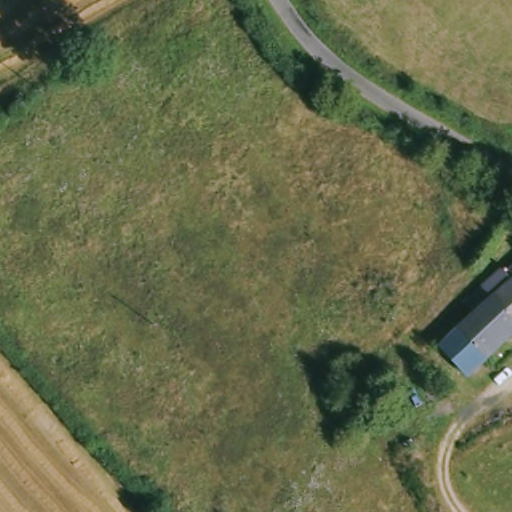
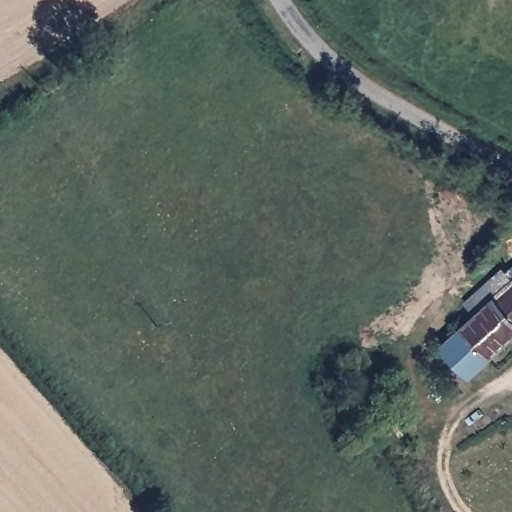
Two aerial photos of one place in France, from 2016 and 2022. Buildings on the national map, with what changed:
unchanged [(442,355),(460,338),(477,323),(466,312),(475,305),(504,278),(512,287),(512,345),(487,368),(468,384),(442,355)]

